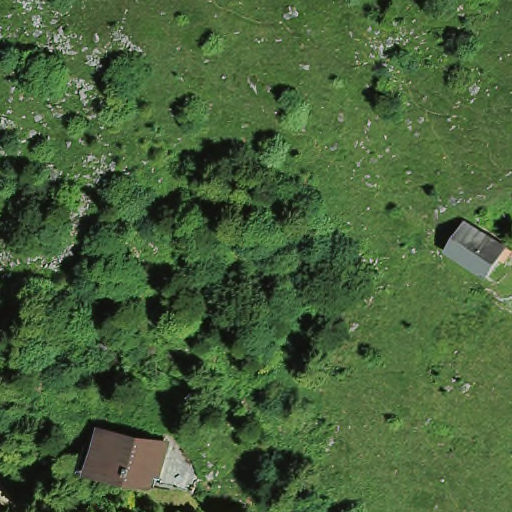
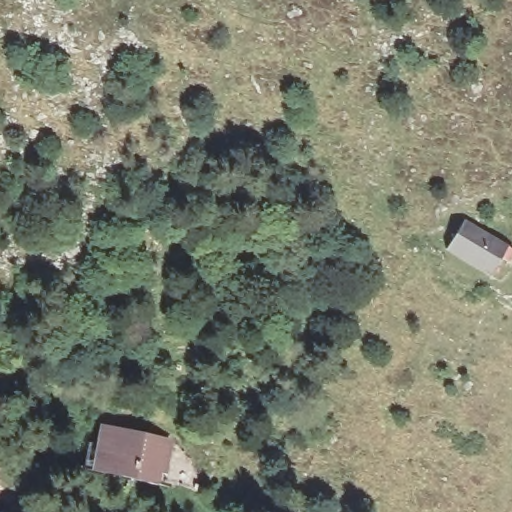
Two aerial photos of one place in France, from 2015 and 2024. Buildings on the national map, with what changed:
unchanged [(447,245),(464,212),(505,241),(491,271),(447,245)]
unchanged [(91,461),(98,416),(169,438),(158,482),(91,461)]

